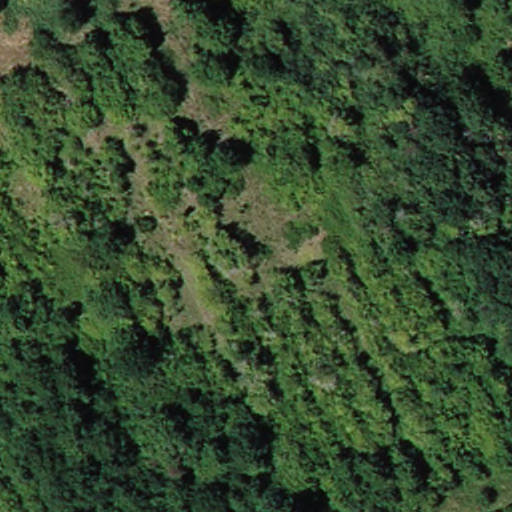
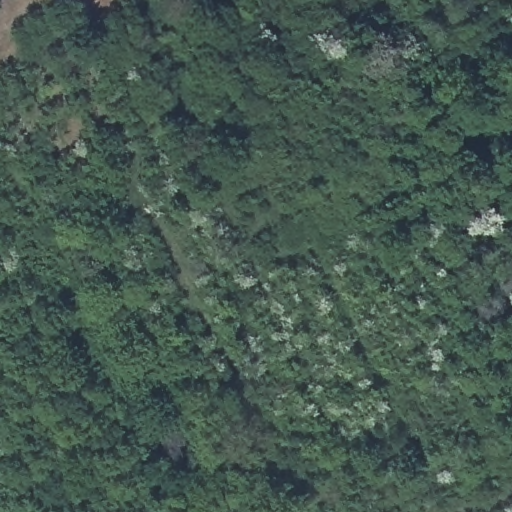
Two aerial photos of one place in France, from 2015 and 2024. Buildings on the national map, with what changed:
[]

